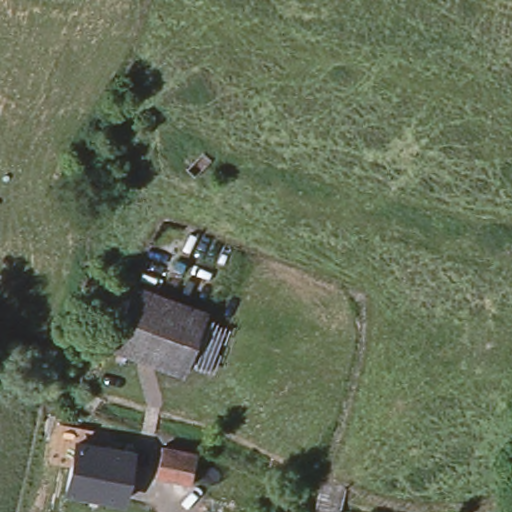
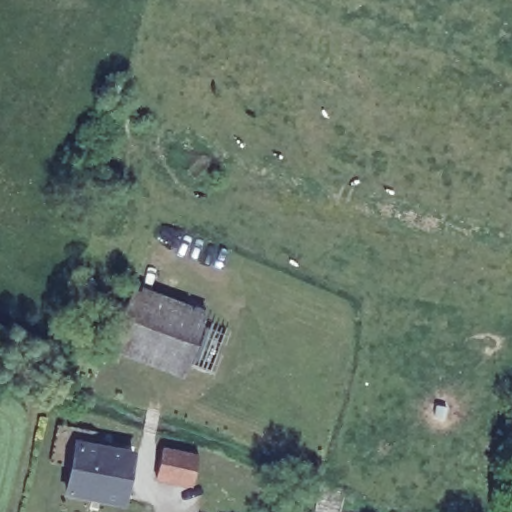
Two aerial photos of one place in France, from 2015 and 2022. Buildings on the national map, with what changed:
unchanged [(212,164),(195,180),(187,172),(204,155),(212,164)]
unchanged [(166,291),(164,295),(210,312),(206,321),(190,361),(186,370),(116,343),(140,281),(166,291)]
unchanged [(230,330),(214,370),(190,361),(206,321),(230,330)]
unchanged [(56,407),(55,414),(47,412),(49,405),(56,407)]
unchanged [(131,455),(121,504),(65,493),(73,443),(131,455)]
unchanged [(196,452),(190,481),(155,474),(160,444),(196,452)]

